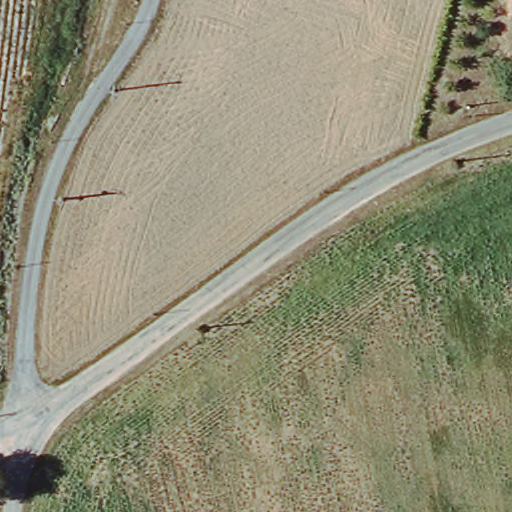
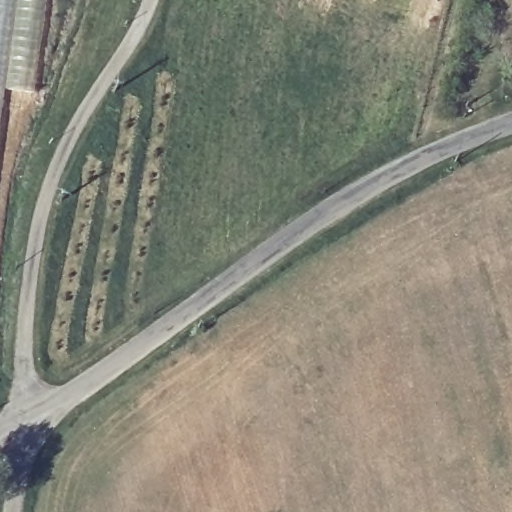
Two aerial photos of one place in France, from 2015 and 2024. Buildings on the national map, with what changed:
new [(34,92),(3,90),(9,38),(2,38),(0,46),(0,0),(47,0),(34,92)]

